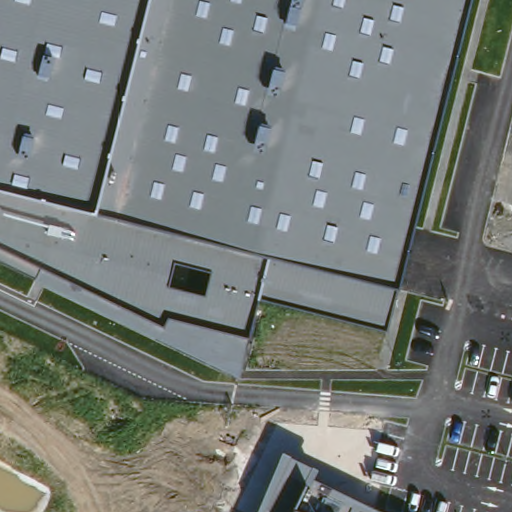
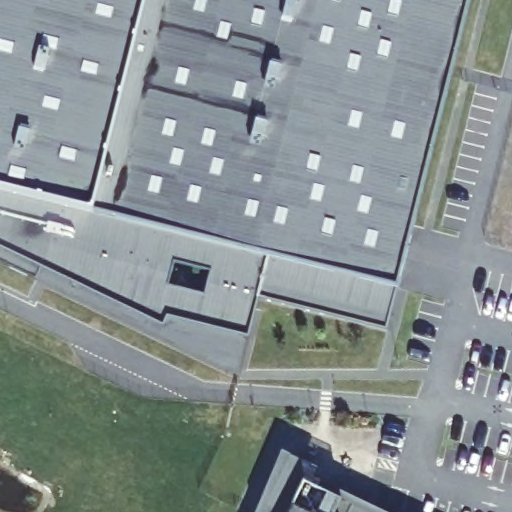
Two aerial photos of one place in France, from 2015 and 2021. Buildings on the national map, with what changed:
unchanged [(0,0),(469,0),(397,288),(386,330),(259,295),(239,378),(0,261),(0,0)]
unchanged [(283,451),(318,468),(313,480),(381,512),(256,512),(283,451)]

